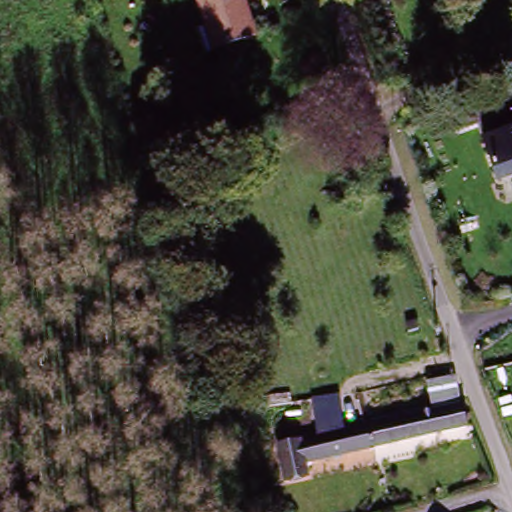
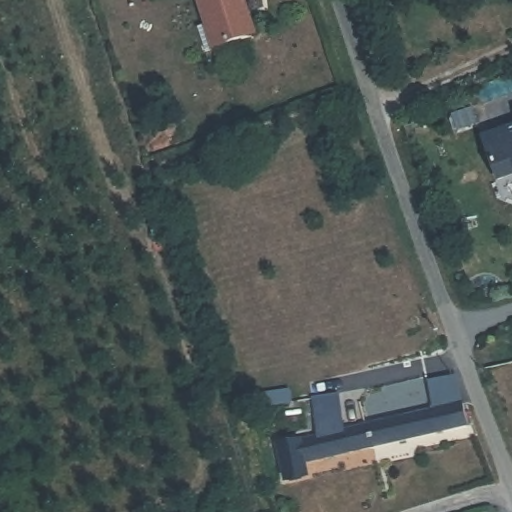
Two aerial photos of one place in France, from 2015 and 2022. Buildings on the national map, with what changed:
unchanged [(216,50),(199,0),(243,0),(256,37),(216,50)]
unchanged [(484,136),(512,127),(512,175),(498,180),(484,136)]
unchanged [(440,408),(434,383),(455,379),(460,404),(465,403),(468,425),(375,447),(369,425),(440,408)]
unchanged [(307,463),(308,477),(287,481),(280,446),(317,437),(309,404),(344,396),(352,429),(369,425),(375,447),(307,463)]

